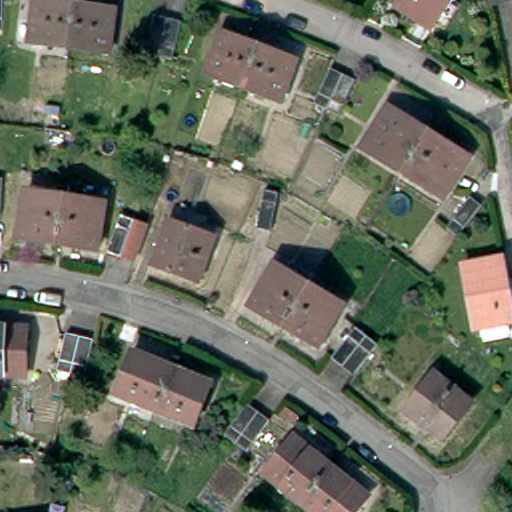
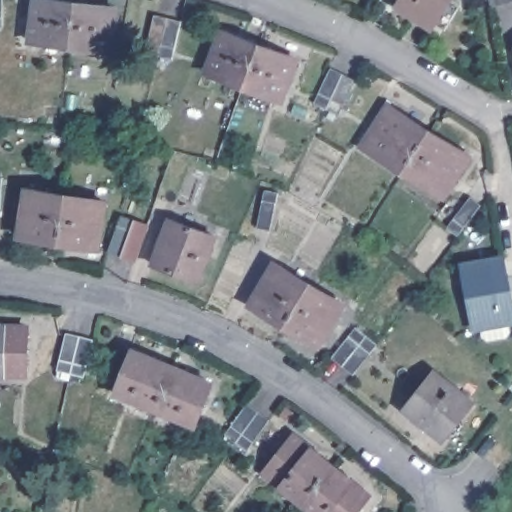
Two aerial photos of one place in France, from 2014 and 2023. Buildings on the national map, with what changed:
unchanged [(0,31),(0,0),(4,0),(3,31),(0,31)]
unchanged [(398,10),(403,0),(451,0),(433,29),(398,10)]
unchanged [(512,0),(512,2),(491,8),(490,0),(512,0)]
unchanged [(69,49),(31,43),(37,1),(75,6),(69,49)]
unchanged [(113,11),(108,55),(69,49),(75,6),(113,11)]
unchanged [(173,64),(161,60),(146,56),(156,18),(170,21),(183,25),(173,64)]
unchanged [(246,68),(240,83),(206,70),(219,30),(254,44),(246,68)]
unchanged [(290,58),(276,97),(240,83),(246,68),(254,44),(290,58)]
unchanged [(341,119),(328,113),(316,108),(334,71),(346,78),(358,84),(341,119)]
unchanged [(401,169),(361,144),(385,105),(425,129),(401,169)]
unchanged [(464,154),(440,193),(401,169),(425,129),(464,154)]
unchanged [(0,180),(2,181),(0,212),(0,180)]
unchanged [(26,192),(28,184),(44,186),(43,194),(65,197),(58,244),(19,239),(26,192)]
unchanged [(468,230),(456,222),(479,191),(491,199),(468,230)]
unchanged [(274,233),(261,232),(264,193),(278,194),(274,233)]
unchanged [(65,197),(105,203),(98,250),(58,244),(65,197)]
unchanged [(195,279),(148,260),(166,216),(213,234),(195,279)]
unchanged [(108,254),(122,217),(149,226),(142,245),(135,264),(108,254)]
unchanged [(512,307),(512,323),(476,330),(464,267),(503,259),(512,307)]
unchanged [(252,308),(277,267),(310,285),(286,326),(252,308)]
unchanged [(310,285),(343,303),(319,344),(286,326),(310,285)]
unchanged [(331,360),(356,328),(379,346),(354,377),(331,360)]
unchanged [(27,376),(0,375),(0,329),(28,330),(27,376)]
unchanged [(84,380),(71,377),(58,374),(67,335),(80,339),(93,341),(84,380)]
unchanged [(116,392),(134,353),(171,368),(155,408),(116,392)]
unchanged [(171,368),(211,385),(194,426),(155,408),(171,368)]
unchanged [(472,403),(452,427),(442,439),(420,422),(406,410),(437,374),(459,392),(472,403)]
unchanged [(246,454),(234,446),(223,438),(247,405),(257,414),(269,423),(246,454)]
unchanged [(264,475),(294,438),(330,467),(301,504),(264,475)]
unchanged [(330,467),(367,496),(354,512),(312,512),(301,504),(330,467)]

